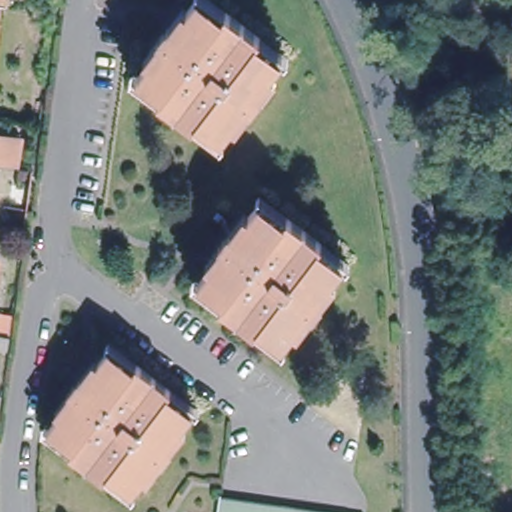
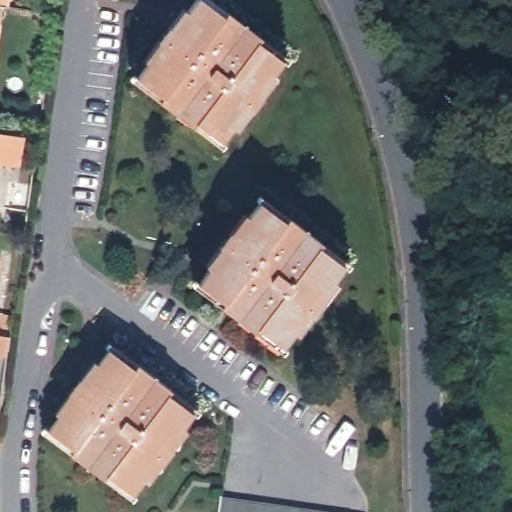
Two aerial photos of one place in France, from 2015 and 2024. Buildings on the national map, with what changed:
unchanged [(2,0),(0,0),(10,0),(10,2),(2,0)]
unchanged [(0,14),(0,0),(2,0),(0,14)]
unchanged [(224,19),(228,14),(260,38),(257,43),(283,64),(271,79),(268,76),(250,99),(258,105),(251,113),(244,108),(229,125),(233,128),(224,139),(196,119),(193,124),(161,99),(164,95),(140,78),(152,62),(155,64),(168,49),(158,41),(165,33),(174,39),(190,19),(187,16),(199,0),(224,19)]
unchanged [(23,167),(0,164),(0,139),(26,143),(23,167)]
unchanged [(279,221),(283,217),(318,242),(314,246),(340,265),(329,280),(324,277),(305,301),(313,307),(308,314),(300,309),(285,327),(290,330),(280,344),(254,324),(250,329),(215,304),(219,299),(197,282),(208,266),(211,269),(224,253),(215,247),(220,239),(229,245),(248,220),(244,218),(255,204),(279,221)]
unchanged [(133,368),(137,363),(171,389),(169,392),(195,413),(185,426),(181,422),(161,447),(169,454),(163,463),(154,456),(141,472),(145,476),(133,491),(109,472),(105,477),(71,449),(74,446),(51,426),(60,414),(64,417),(78,399),(70,392),(78,383),(85,389),(104,367),(100,364),(111,351),(133,368)]
unchanged [(219,494),(365,512),(216,512),(219,494)]

